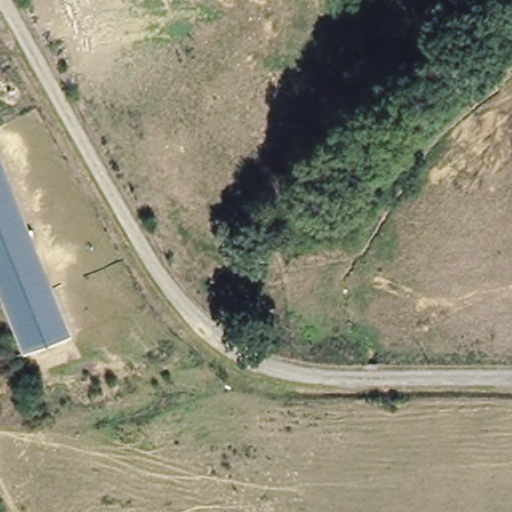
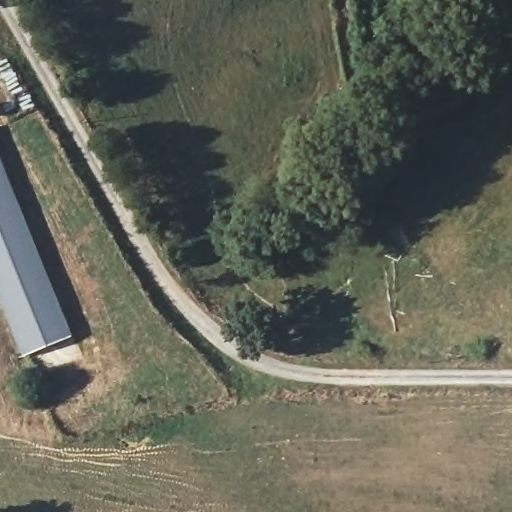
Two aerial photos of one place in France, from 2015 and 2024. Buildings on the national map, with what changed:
unchanged [(0,155),(71,334),(25,355),(0,294),(0,155)]

